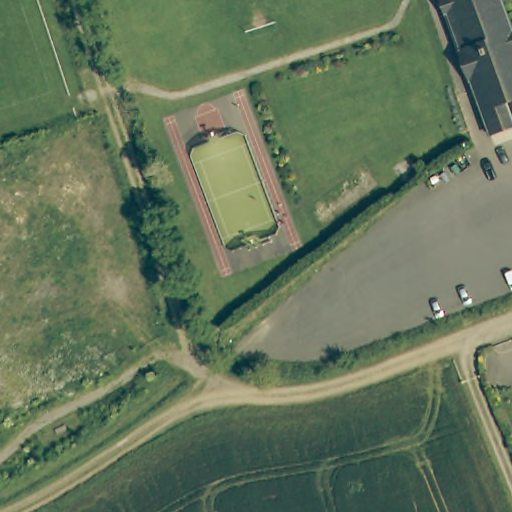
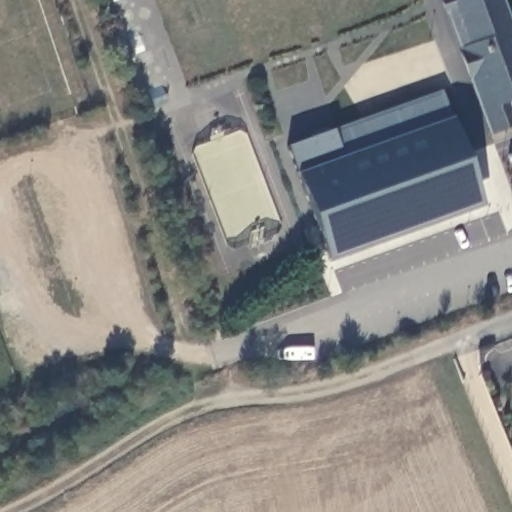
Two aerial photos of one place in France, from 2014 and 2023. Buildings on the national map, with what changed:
unchanged [(478,69),(467,73),(439,0),(451,0),(478,69)]
unchanged [(488,129),(467,73),(478,69),(451,0),(501,0),(510,24),(512,23),(512,118),(488,129)]
new [(330,259),(297,172),(286,147),(334,128),(443,87),(453,116),(485,205),(330,259)]

